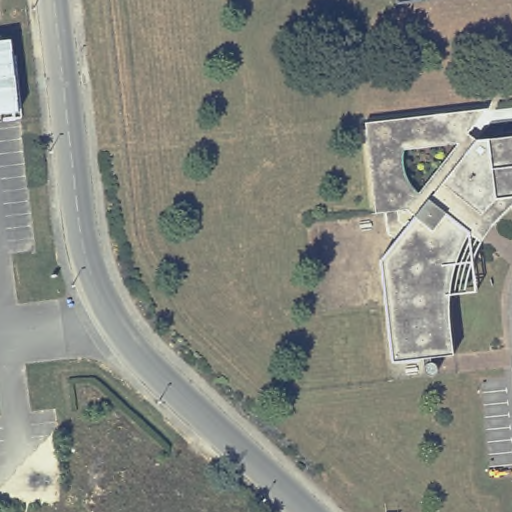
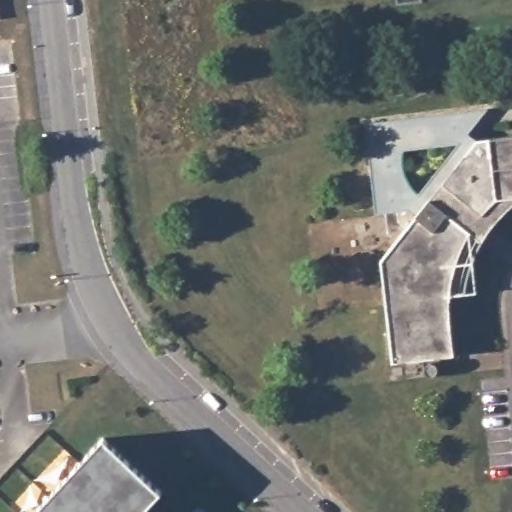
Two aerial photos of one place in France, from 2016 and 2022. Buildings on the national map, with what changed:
unchanged [(423,3),(398,6),(397,0),(423,0),(423,3)]
unchanged [(420,370),(419,366),(394,370),(380,277),(399,254),(386,246),(384,219),(372,220),(359,127),(482,110),(461,137),(472,144),(472,153),(479,145),(512,140),(512,201),(511,201),(501,211),(489,222),(488,226),(480,218),(469,233),(459,249),(455,264),(450,280),(449,295),(446,315),(446,331),(448,345),(448,358),(428,361),(433,369),(437,376),(434,380),(429,380),(422,376),(420,370)]
new [(159,491),(140,512),(33,512),(102,438),(159,491)]

